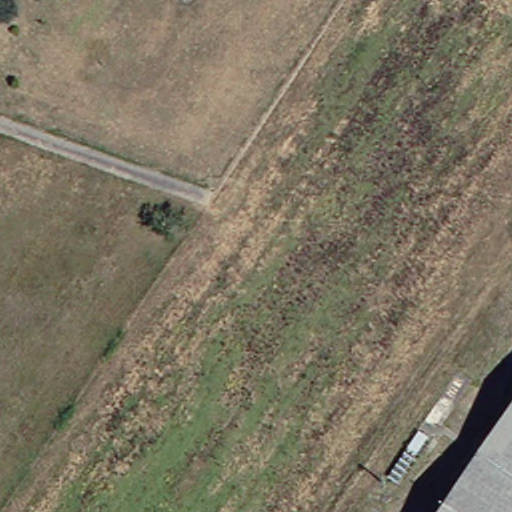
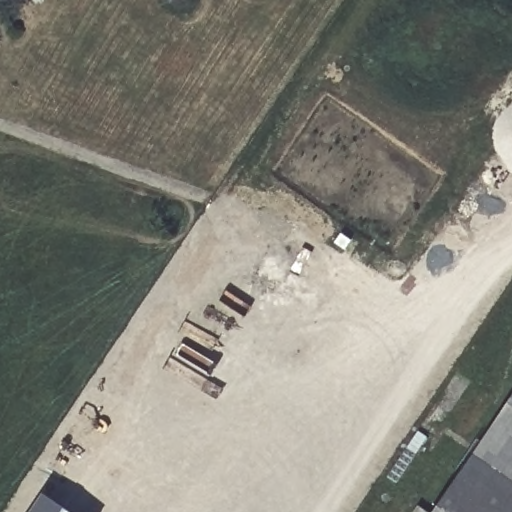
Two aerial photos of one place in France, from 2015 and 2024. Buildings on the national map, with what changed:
unchanged [(430,512),(512,391),(512,512),(430,512)]
new [(76,512),(27,512),(42,489),(76,512)]

